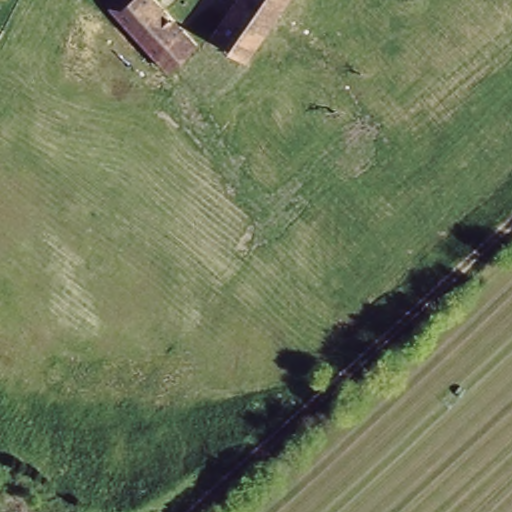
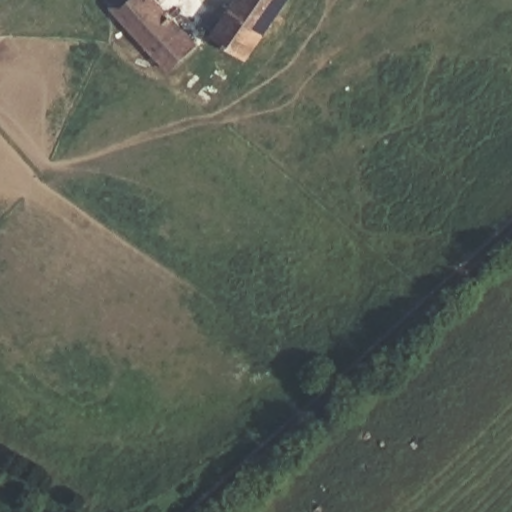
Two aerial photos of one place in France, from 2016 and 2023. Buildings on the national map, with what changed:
unchanged [(167,70),(102,1),(104,0),(152,0),(194,45),(167,70)]
unchanged [(243,59),(209,35),(234,0),(284,0),(243,59)]

